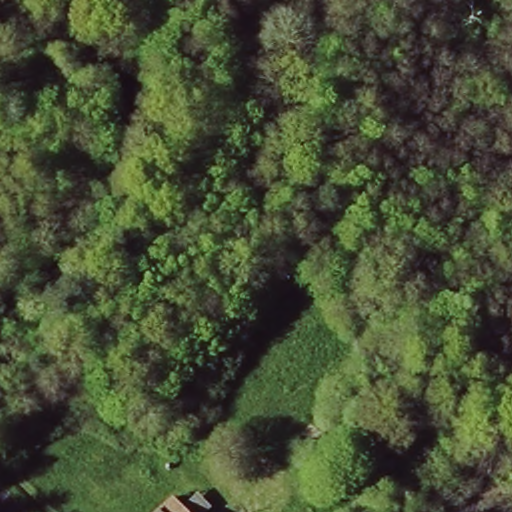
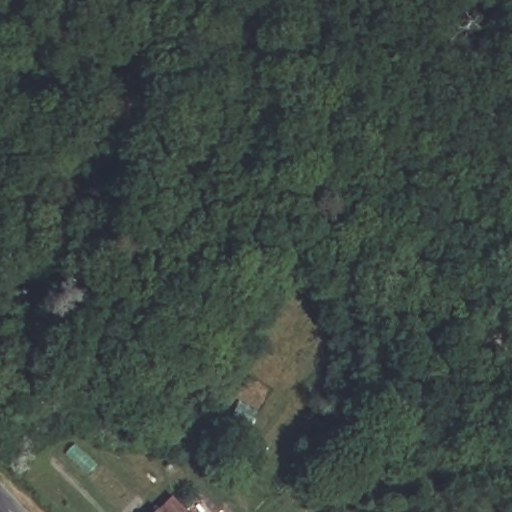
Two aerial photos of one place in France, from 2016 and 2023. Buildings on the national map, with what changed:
unchanged [(165,512),(178,499),(191,512),(165,512)]

